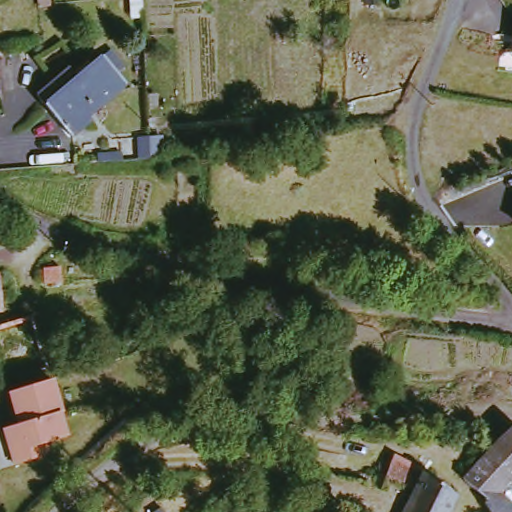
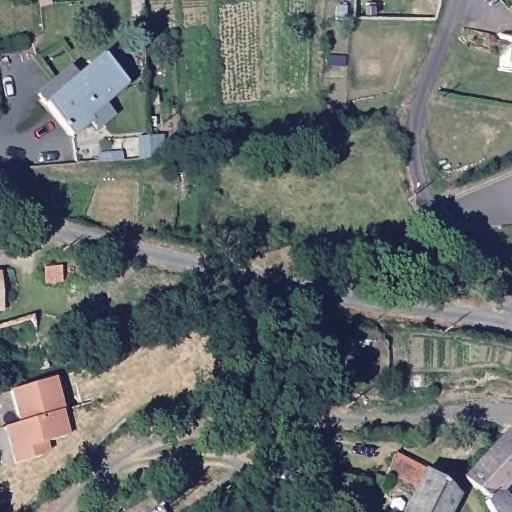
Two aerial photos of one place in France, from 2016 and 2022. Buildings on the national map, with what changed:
unchanged [(86,114),(88,117),(70,131),(45,100),(101,52),(125,82),(86,114)]
unchanged [(45,275),(44,261),(60,260),(61,273),(45,275)]
unchanged [(6,313),(0,314),(0,272),(7,271),(6,313)]
unchanged [(239,292),(250,292),(256,312),(228,321),(218,293),(239,292)]
unchanged [(52,381),(63,413),(60,415),(68,438),(45,446),(48,455),(41,458),(16,466),(4,432),(20,426),(10,394),(52,381)]
unchanged [(493,502),(469,480),(502,442),(512,431),(512,482),(493,502)]
unchanged [(421,488),(391,478),(397,458),(429,472),(461,495),(453,512),(410,512),(421,488)]

